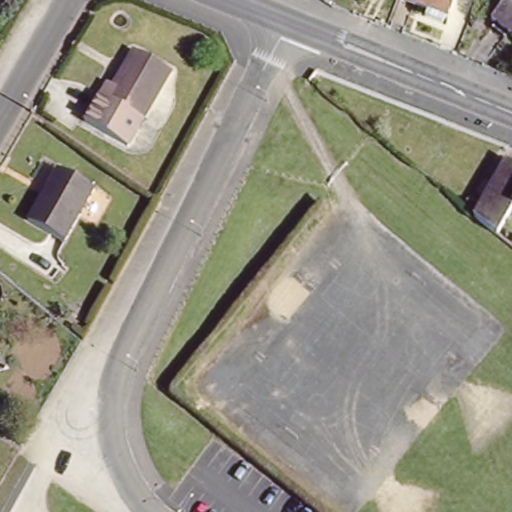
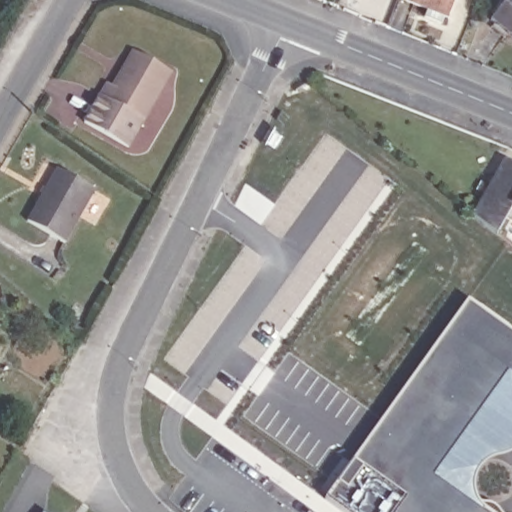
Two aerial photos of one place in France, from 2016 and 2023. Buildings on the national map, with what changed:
unchanged [(456,0),(447,24),(442,21),(440,30),(422,22),(425,15),(395,2),(396,0),(456,0)]
unchanged [(506,0),(512,0),(512,36),(491,20),(506,0)]
unchanged [(109,75),(115,80),(136,44),(174,65),(130,140),(86,114),(109,75)]
unchanged [(468,217),(502,161),(512,167),(512,208),(509,205),(490,235),(468,217)]
unchanged [(57,167),(97,189),(67,241),(29,219),(57,167)]
new [(481,306),(482,305),(511,326),(510,327),(512,329),(512,387),(507,383),(439,476),(453,486),(454,485),(474,500),(479,502),(482,503),(492,504),(496,506),(500,509),(502,512),(344,512),(327,500),(472,300),(481,306)]
new [(507,383),(512,387),(512,393),(510,397),(509,400),(509,405),(509,407),(510,411),(512,414),(512,454),(509,456),(499,458),(495,460),(487,465),(483,470),(482,470),(479,477),(477,485),(477,492),(479,502),(474,500),(454,485),(453,486),(439,476),(507,383)]
new [(510,411),(509,407),(509,405),(509,400),(510,397),(512,393),(512,414),(510,411)]

